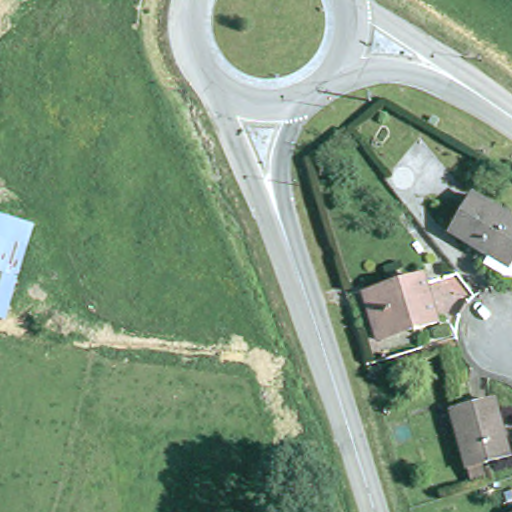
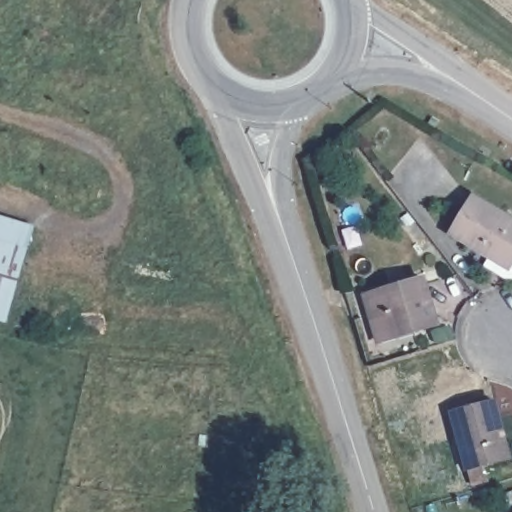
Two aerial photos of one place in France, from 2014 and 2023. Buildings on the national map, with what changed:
unchanged [(472,251),(477,239),(449,223),(472,185),(512,209),(512,270),(503,266),(472,251)]
unchanged [(0,318),(0,218),(33,228),(5,319),(0,318)]
unchanged [(427,281),(441,328),(422,334),(420,328),(382,338),(371,296),(427,281)]
unchanged [(494,398),(512,456),(469,470),(451,411),(494,398)]

